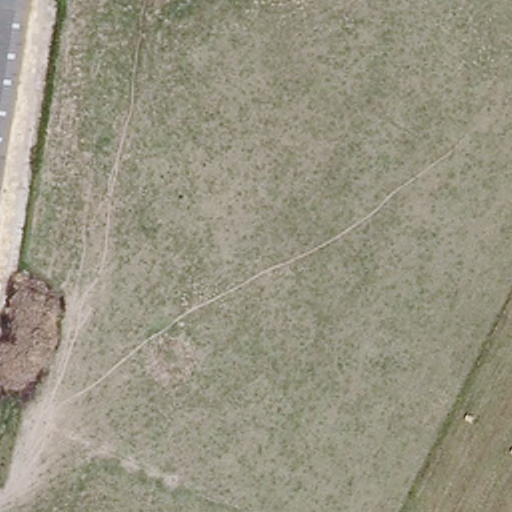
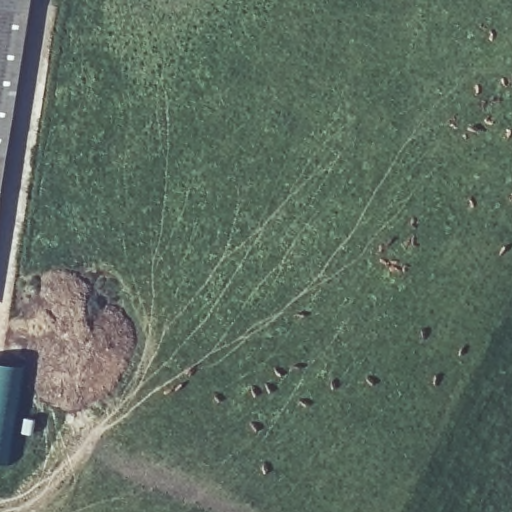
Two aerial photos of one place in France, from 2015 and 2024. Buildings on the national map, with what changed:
unchanged [(19,96),(0,268),(0,0),(29,0),(19,96)]
new [(0,363),(19,366),(5,457),(0,456),(0,363)]

